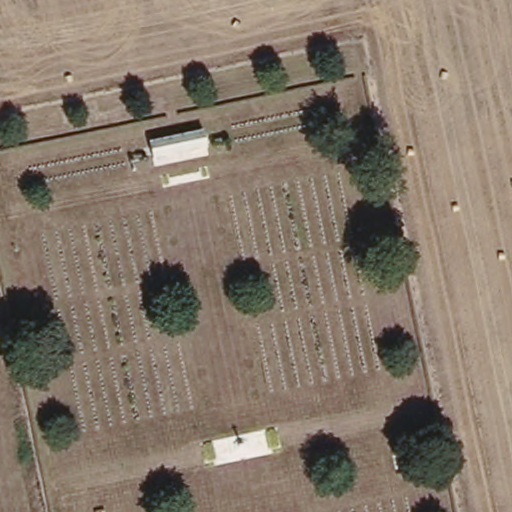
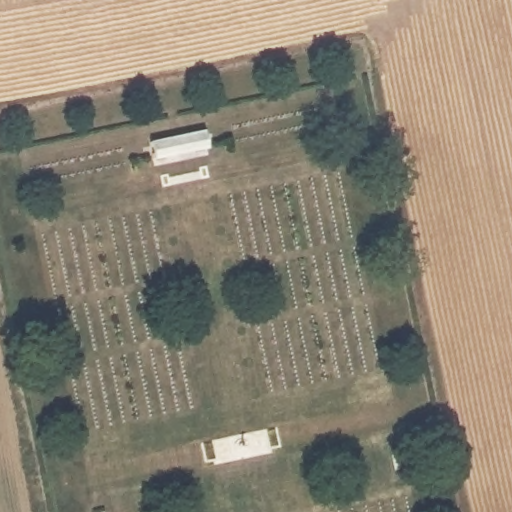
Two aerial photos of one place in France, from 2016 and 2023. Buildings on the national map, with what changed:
unchanged [(202,133),(206,150),(155,164),(149,146),(202,133)]

